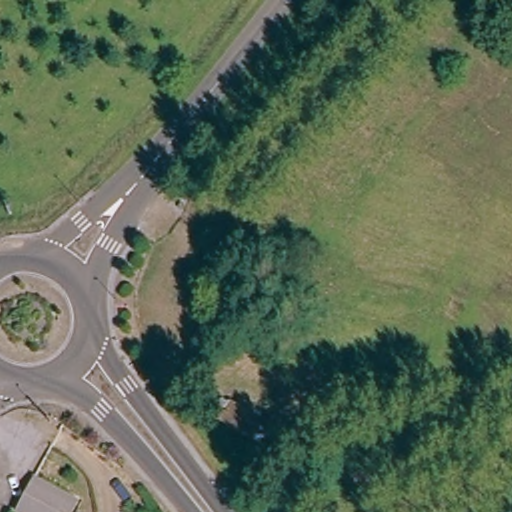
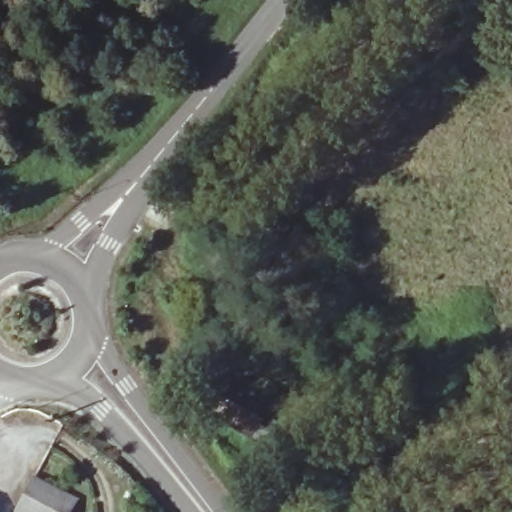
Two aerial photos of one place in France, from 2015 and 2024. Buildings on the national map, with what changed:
unchanged [(247,440),(208,415),(218,398),(257,422),(247,440)]
unchanged [(17,511),(36,475),(82,497),(73,512),(19,512),(17,511)]

